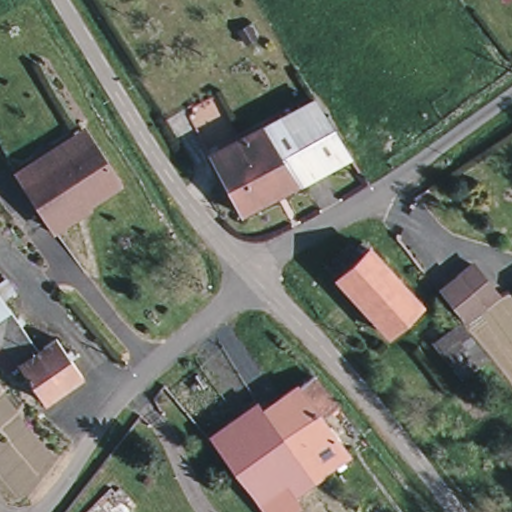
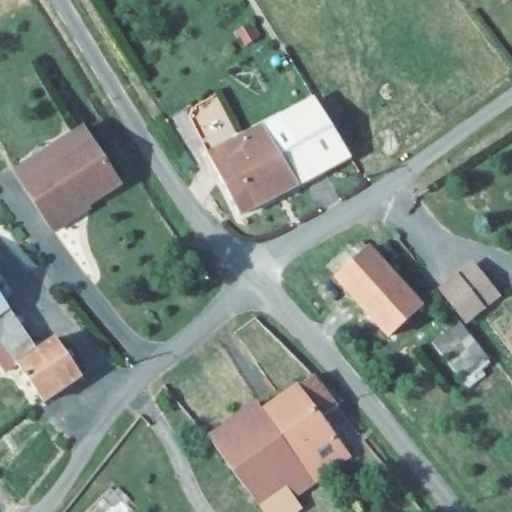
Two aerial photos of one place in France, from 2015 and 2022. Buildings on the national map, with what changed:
unchanged [(318,100),(351,155),(297,184),(265,126),(318,100)]
unchanged [(242,214),(212,154),(265,126),(297,184),(242,214)]
unchanged [(50,236),(45,227),(11,176),(78,131),(115,189),(80,210),(83,214),(50,236)]
unchanged [(367,313),(337,279),(327,267),(350,246),(355,251),(364,243),(369,249),(399,284),(367,313)]
unchanged [(473,270),(498,302),(463,328),(439,298),(473,270)]
unchanged [(8,286),(0,292),(0,275),(8,286)]
unchanged [(399,284),(421,308),(388,337),(367,313),(399,284)]
unchanged [(2,301),(0,302),(0,297),(2,301)]
unchanged [(2,301),(33,345),(13,359),(0,340),(0,302),(2,301)]
unchanged [(460,329),(482,357),(452,379),(430,352),(460,329)]
unchanged [(33,345),(50,333),(77,371),(38,397),(13,359),(33,345)]
unchanged [(293,498),(274,512),(262,512),(210,438),(260,402),(265,411),(313,376),(337,409),(320,420),(342,450),(315,468),(322,477),(293,498)]

